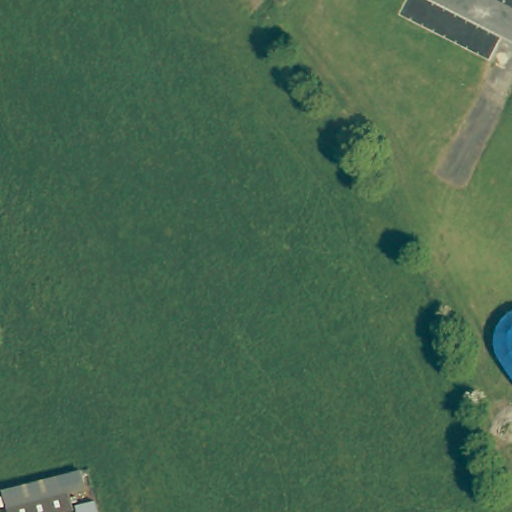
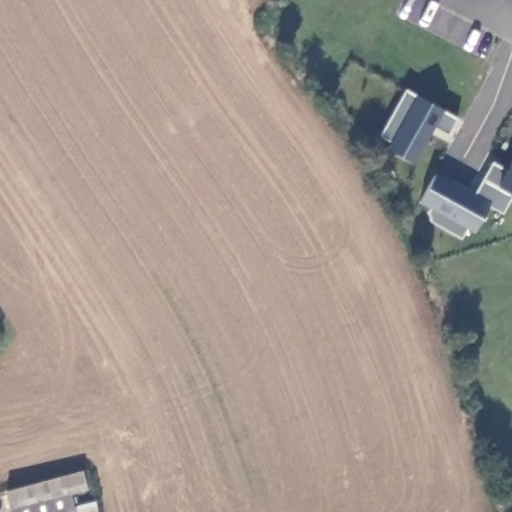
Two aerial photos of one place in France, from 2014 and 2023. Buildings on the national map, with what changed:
new [(408,90),(456,117),(448,133),(436,125),(414,164),(384,149),(389,140),(378,135),(408,90)]
new [(429,206),(418,200),(435,174),(473,195),(494,159),(507,167),(512,158),(512,195),(502,213),(489,205),(476,233),(465,225),(460,237),(430,220),(427,210),(429,206)]
unchanged [(6,490),(89,469),(93,490),(75,493),(78,505),(57,512),(14,512),(6,490)]
unchanged [(102,512),(80,512),(78,505),(99,500),(102,512)]

